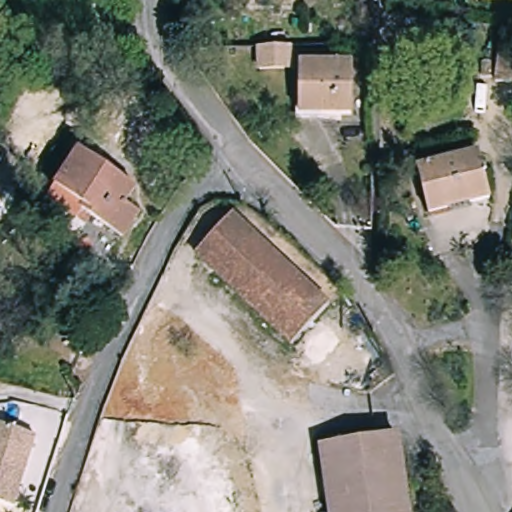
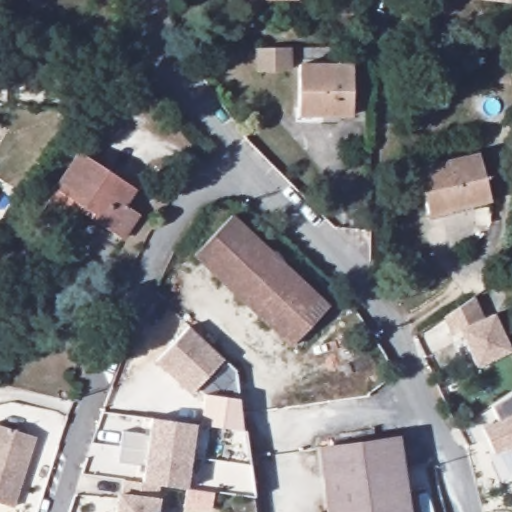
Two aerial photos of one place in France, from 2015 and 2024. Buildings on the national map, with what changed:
new [(255,42),(285,42),(285,66),(255,66),(255,42)]
unchanged [(494,84),(497,42),(512,43),(512,86),(494,84)]
unchanged [(302,68),(352,70),(350,117),(299,115),(302,68)]
unchanged [(120,239),(78,210),(75,216),(47,197),(57,184),(83,148),(137,187),(125,203),(140,213),(120,239)]
unchanged [(415,169),(475,153),(487,200),(425,215),(415,169)]
unchanged [(325,302),(288,344),(192,254),(230,213),(325,302)]
new [(475,295),(485,316),(494,312),(511,348),(478,363),(466,337),(470,334),(467,326),(455,332),(447,314),(475,295)]
new [(191,396),(154,362),(187,325),(222,359),(191,396)]
new [(500,421),(492,405),(512,393),(512,446),(496,453),(485,428),(500,421)]
new [(242,431),(200,426),(203,395),(237,398),(242,431)]
new [(195,422),(187,487),(142,481),(145,465),(118,461),(122,430),(149,433),(151,416),(195,422)]
unchanged [(15,504),(0,500),(0,422),(37,433),(15,504)]
unchanged [(318,445),(395,433),(406,512),(328,512),(318,445)]
new [(158,498),(157,512),(112,512),(115,493),(122,493),(121,481),(158,484),(158,498)]

